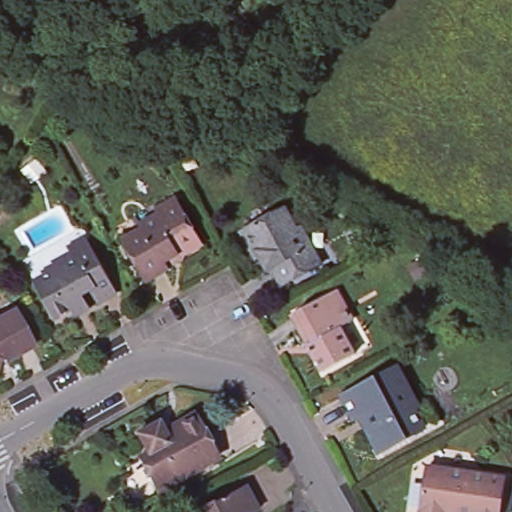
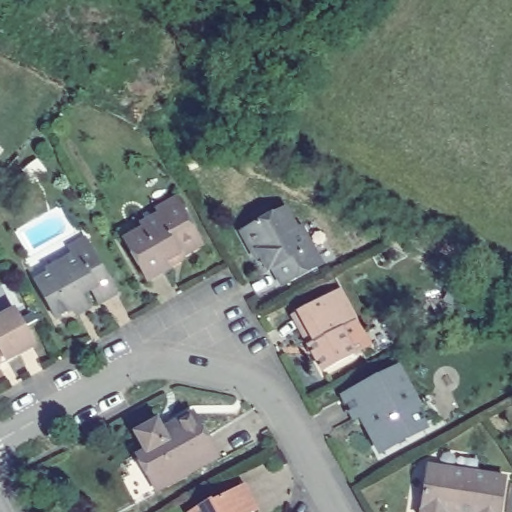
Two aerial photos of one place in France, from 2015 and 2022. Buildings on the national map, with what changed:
unchanged [(207,246),(149,288),(126,241),(142,232),(140,226),(160,216),(155,208),(179,196),(207,246)]
unchanged [(275,277),(270,277),(263,261),(257,264),(242,233),(290,206),(299,230),(312,227),(325,267),(284,291),(275,277)]
unchanged [(35,280),(53,276),(50,267),(72,256),(70,247),(88,241),(120,295),(58,323),(35,280)]
unchanged [(340,290),(350,307),(345,327),(360,360),(325,377),(296,316),(340,290)]
unchanged [(40,350),(4,366),(0,378),(0,320),(17,310),(40,350)]
unchanged [(433,432),(380,461),(364,423),(354,428),(345,397),(402,363),(433,432)]
unchanged [(142,447),(135,436),(161,419),(165,427),(195,412),(223,460),(157,493),(134,455),(142,447)]
unchanged [(512,480),(507,512),(421,512),(430,467),(512,476),(512,480)]
unchanged [(247,486),(258,512),(196,512),(247,486)]

